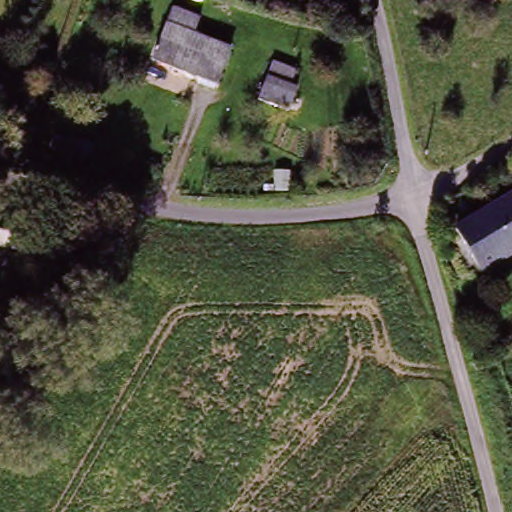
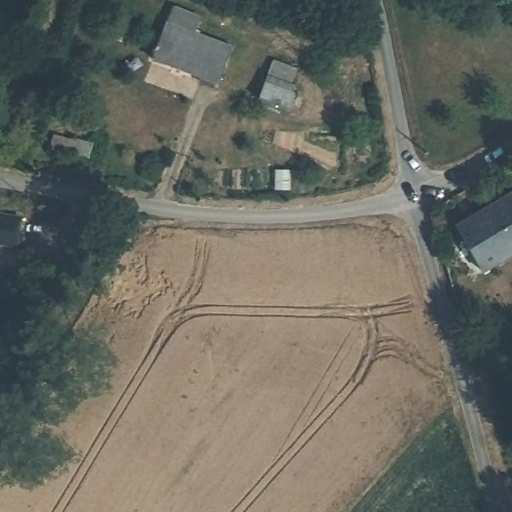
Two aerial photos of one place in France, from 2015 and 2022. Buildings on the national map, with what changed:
unchanged [(193,28),(190,40),(231,53),(220,89),(154,67),(169,20),(193,28)]
unchanged [(293,97),(285,115),(256,102),(263,85),(293,97)]
unchanged [(30,147),(34,135),(71,146),(69,156),(30,147)]
unchanged [(482,277),(458,235),(512,203),(512,260),(482,277)]
unchanged [(0,215),(23,219),(19,246),(0,242),(0,215)]

